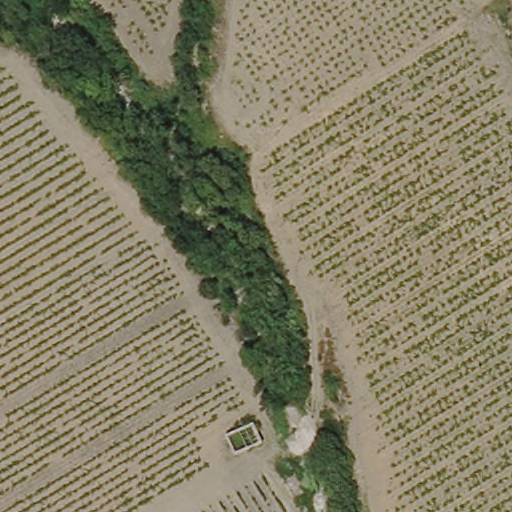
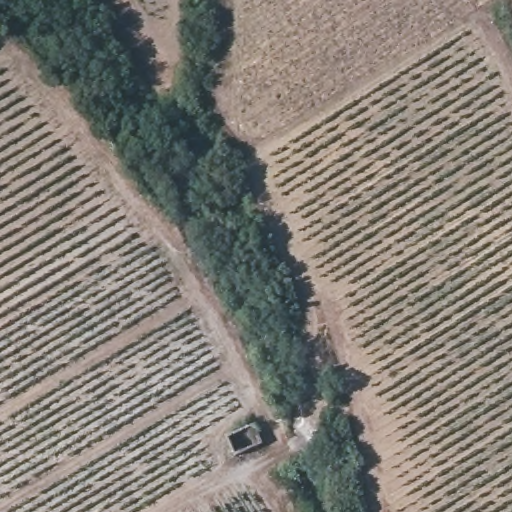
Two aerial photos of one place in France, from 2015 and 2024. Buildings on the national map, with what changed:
unchanged [(238,454),(230,433),(254,422),(262,443),(238,454)]

